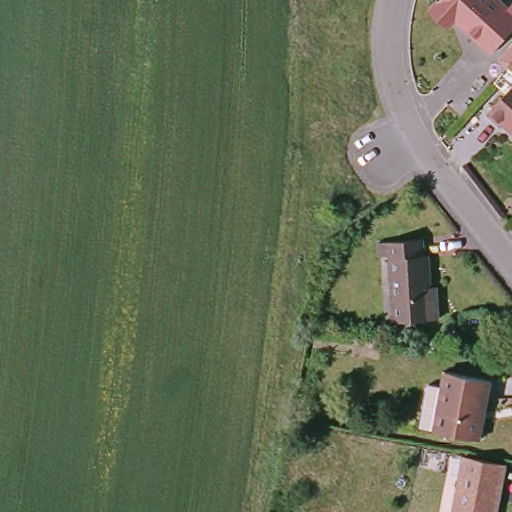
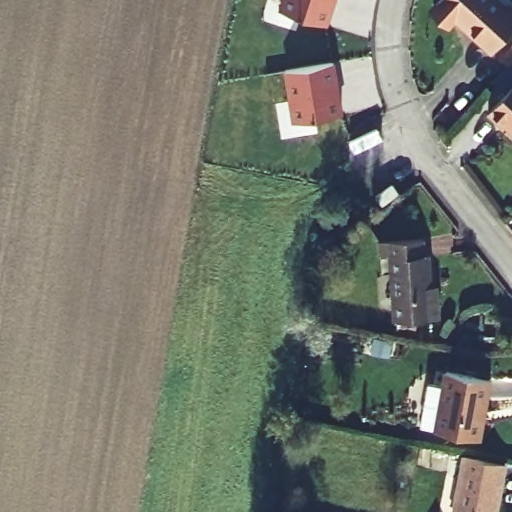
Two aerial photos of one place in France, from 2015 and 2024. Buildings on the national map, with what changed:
new [(278,9),(281,0),(337,0),(328,24),(278,9)]
unchanged [(498,0),(506,8),(512,1),(512,30),(492,52),(455,19),(451,23),(432,6),(437,0),(498,0)]
unchanged [(512,60),(512,67),(508,64),(512,60)]
new [(344,114),(292,122),(283,70),(336,62),(344,114)]
unchanged [(512,130),(505,124),(502,125),(488,112),(512,86),(512,130)]
unchanged [(437,293),(439,315),(395,320),(390,254),(379,255),(378,241),(390,240),(421,237),(422,256),(427,256),(429,287),(437,287),(437,293)]
unchanged [(374,337),(390,340),(388,348),(373,345),(374,337)]
unchanged [(435,376),(450,378),(453,365),(496,374),(485,432),(426,420),(435,376)]
unchanged [(496,512),(455,512),(465,455),(469,456),(506,463),(496,512)]

